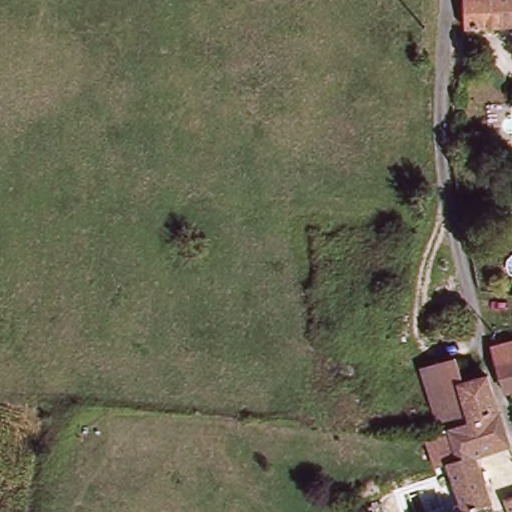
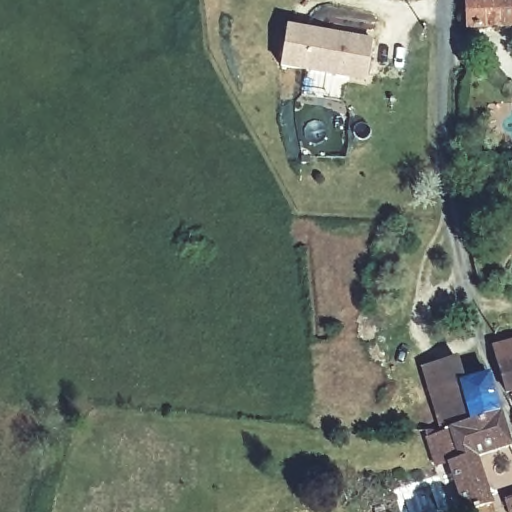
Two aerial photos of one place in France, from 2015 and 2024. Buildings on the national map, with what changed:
unchanged [(464,0),(512,0),(512,29),(465,33),(464,0)]
new [(292,27),(379,40),(372,78),(286,66),(292,27)]
unchanged [(512,341),(512,396),(507,398),(490,349),(512,341)]
unchanged [(483,365),(500,416),(450,431),(433,437),(413,370),(447,360),(451,374),(483,365)]
unchanged [(450,431),(500,416),(509,442),(475,455),(460,460),(450,431)]
unchanged [(491,498),(463,508),(447,465),(460,460),(475,455),(491,498)]
unchanged [(512,490),(512,512),(506,512),(500,495),(512,490)]

